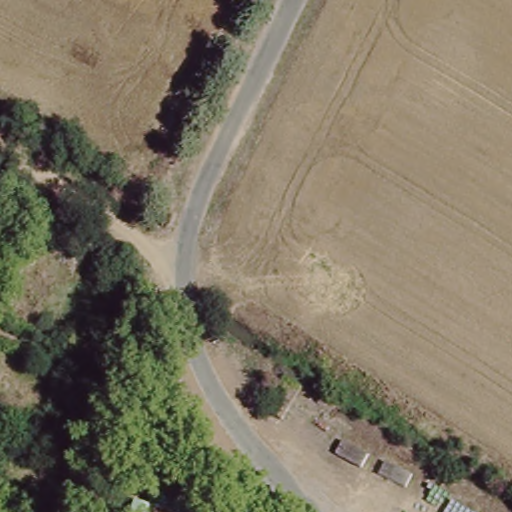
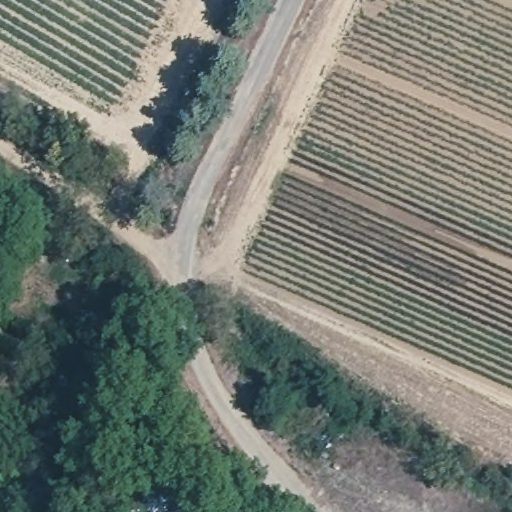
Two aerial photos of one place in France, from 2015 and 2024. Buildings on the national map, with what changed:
unchanged [(265,376),(290,392),(271,421),(246,405),(265,376)]

